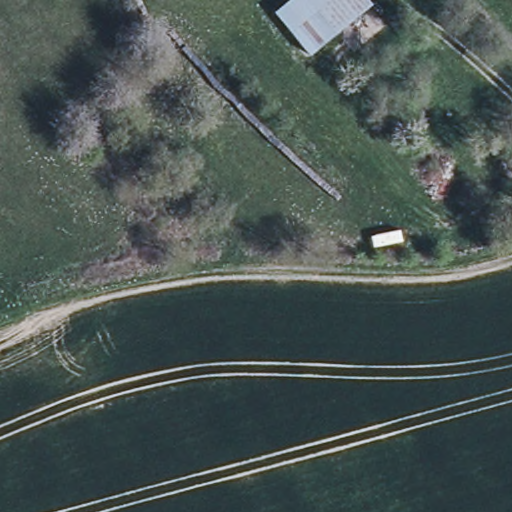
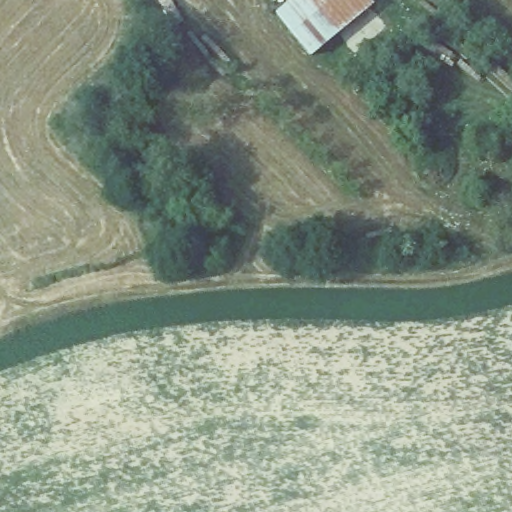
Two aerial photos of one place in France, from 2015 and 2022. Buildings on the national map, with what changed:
unchanged [(287,0),(368,0),(371,4),(311,55),(274,13),(287,0)]

